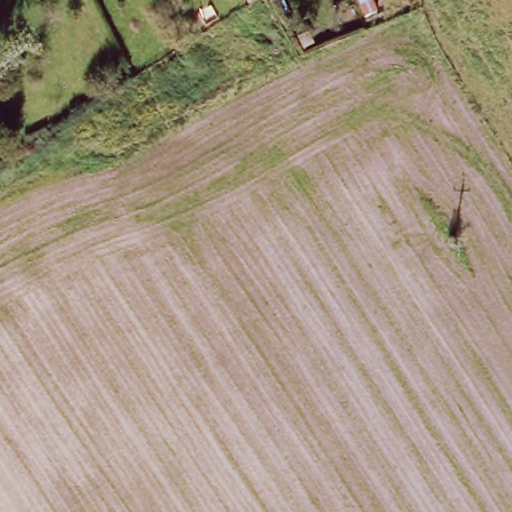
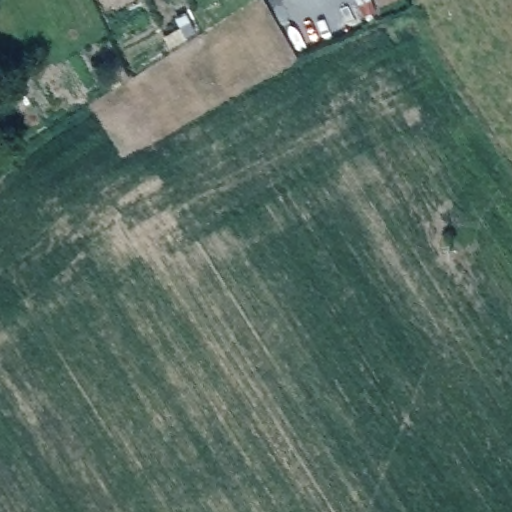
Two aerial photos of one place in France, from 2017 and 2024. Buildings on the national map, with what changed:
unchanged [(0,124),(0,107),(7,121),(0,124)]

